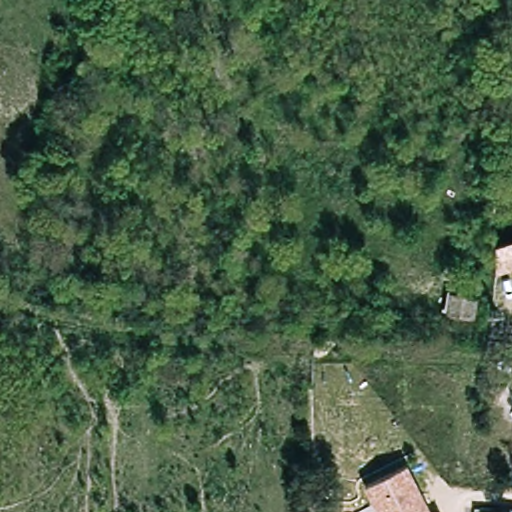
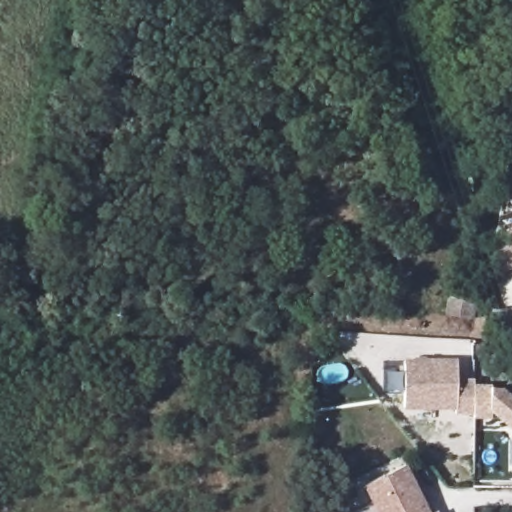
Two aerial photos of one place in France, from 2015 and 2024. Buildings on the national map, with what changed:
unchanged [(498,248),(512,243),(512,273),(502,275),(498,248)]
new [(404,362),(457,362),(457,380),(474,380),(474,414),(455,414),(455,408),(404,408),(404,362)]
new [(490,411),(491,419),(474,419),(474,414),(474,384),(491,384),(490,387),(503,387),(512,395),(512,429),(490,411)]
unchanged [(430,512),(379,512),(365,485),(405,464),(430,512)]
unchanged [(439,512),(437,512),(439,511),(439,512)]

